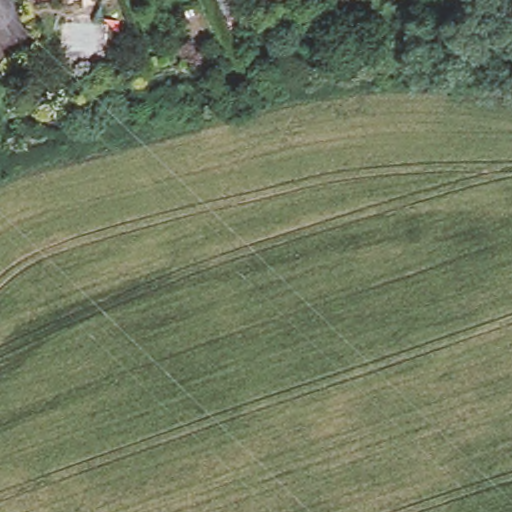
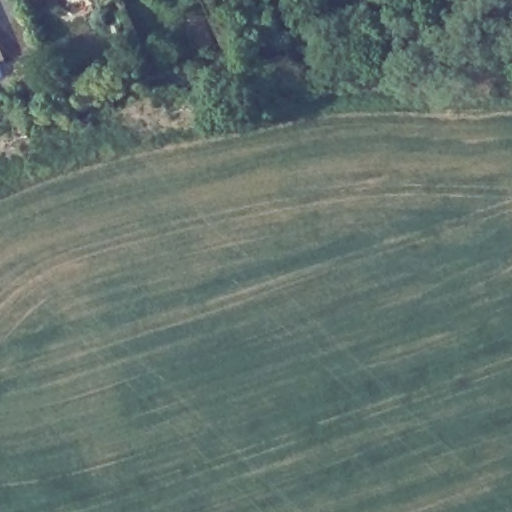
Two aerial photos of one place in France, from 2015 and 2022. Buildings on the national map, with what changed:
unchanged [(0,62),(0,54),(3,61),(0,62)]

